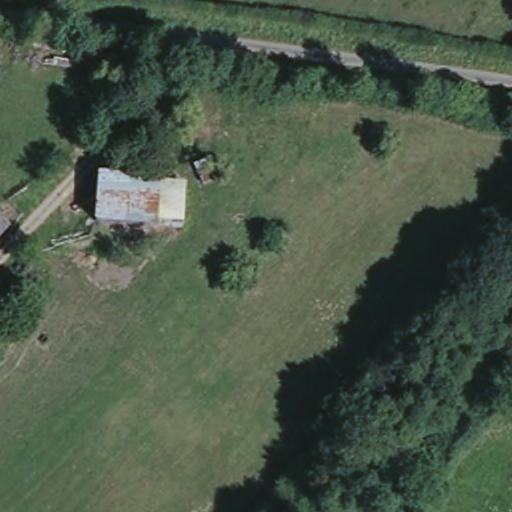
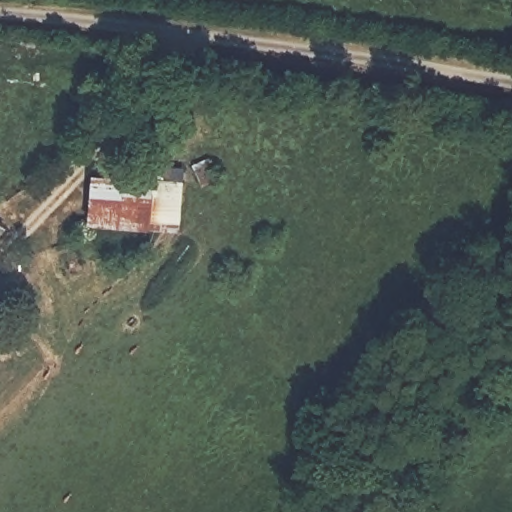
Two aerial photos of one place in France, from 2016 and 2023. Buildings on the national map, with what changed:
unchanged [(96,169),(160,173),(160,167),(186,166),(183,225),(92,219),(96,169)]
unchanged [(5,229),(0,234),(0,224),(5,229)]

